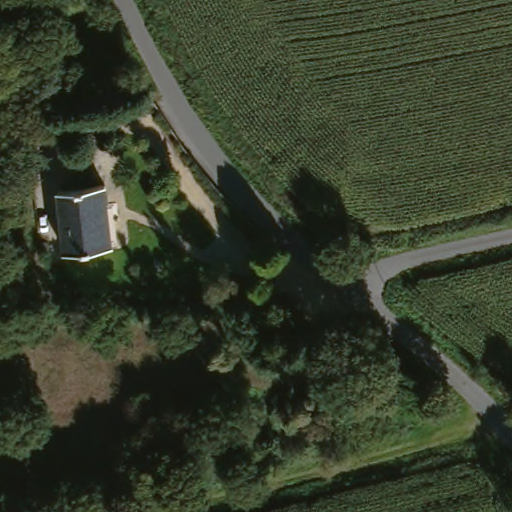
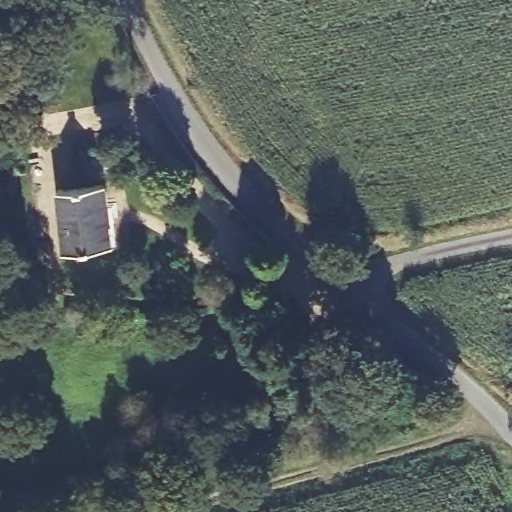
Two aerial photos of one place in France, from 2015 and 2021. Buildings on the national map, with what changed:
unchanged [(64,182),(113,178),(115,203),(110,204),(114,242),(72,246),(64,182)]

